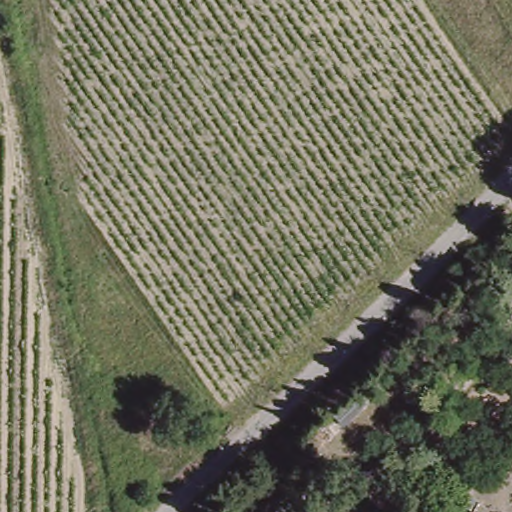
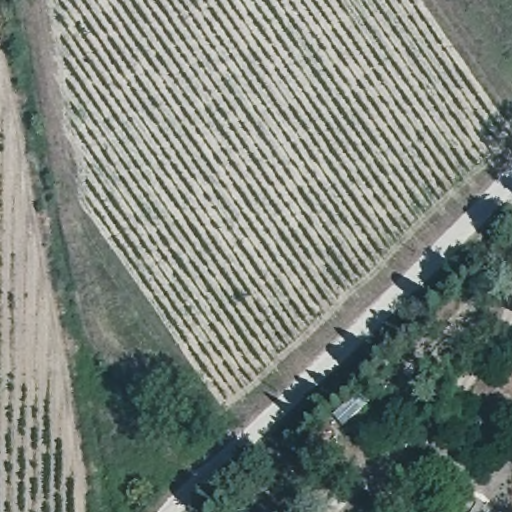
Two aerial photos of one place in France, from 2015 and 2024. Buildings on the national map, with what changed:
unchanged [(201,507),(204,512),(195,512),(201,507)]

